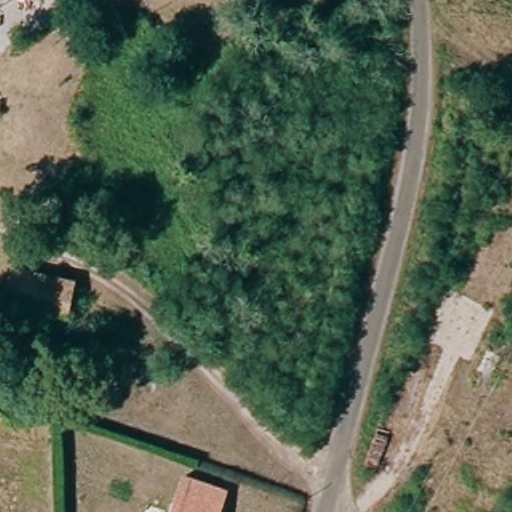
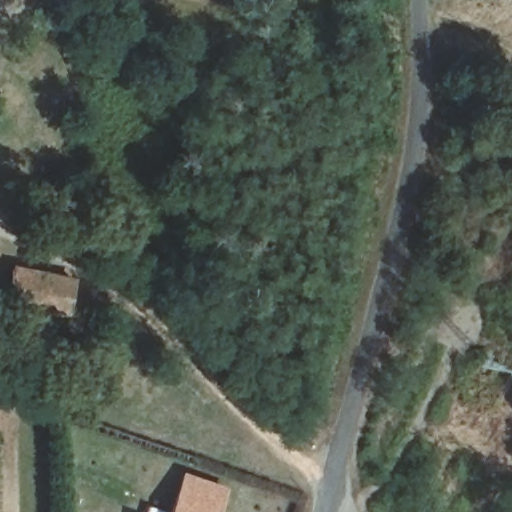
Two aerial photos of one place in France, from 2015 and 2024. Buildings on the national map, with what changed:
unchanged [(7,315),(5,275),(69,272),(68,313),(7,315)]
unchanged [(184,472),(227,486),(217,512),(168,512),(184,472)]

